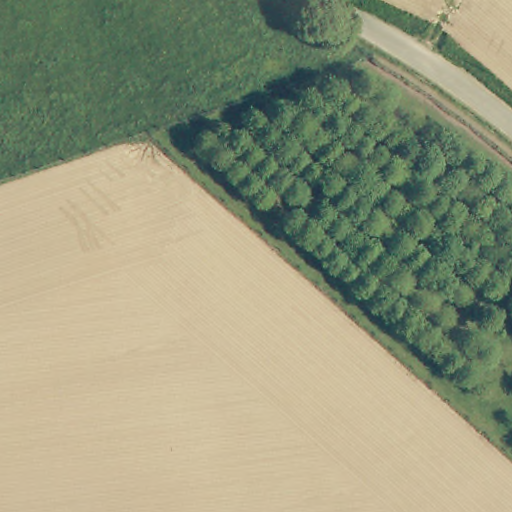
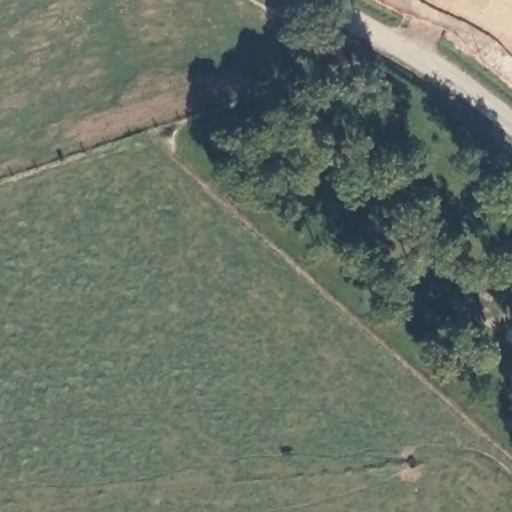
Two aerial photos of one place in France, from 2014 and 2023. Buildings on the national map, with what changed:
[]

